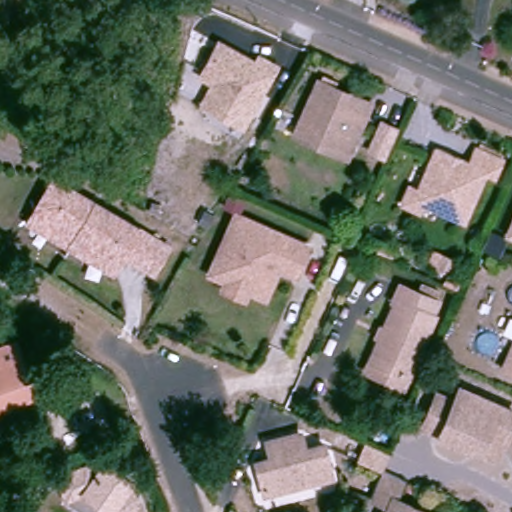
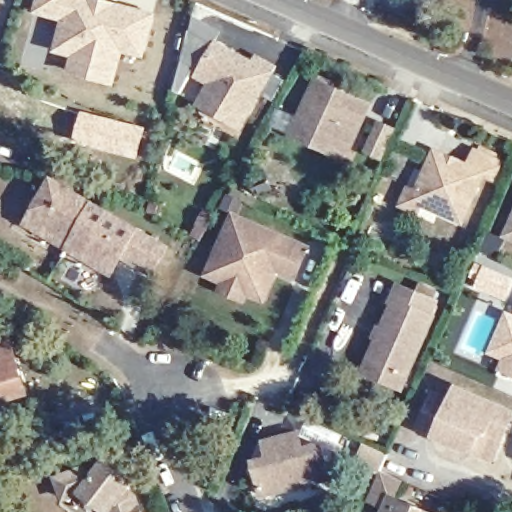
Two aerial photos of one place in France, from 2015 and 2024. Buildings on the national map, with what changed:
new [(73,57),(54,52),(62,20),(34,14),(38,0),(109,0),(158,13),(146,59),(125,54),(116,87),(68,73),(73,57)]
unchanged [(213,87),(200,80),(218,47),(256,69),(259,62),(275,72),(242,131),(215,116),(201,107),(213,87)]
unchanged [(299,129),(306,115),(323,74),(376,97),(356,142),(352,152),(299,129)]
unchanged [(384,125),(400,132),(392,149),(387,160),(371,153),(384,125)]
unchanged [(393,202),(400,186),(409,190),(428,147),(460,162),(467,147),(492,159),(485,175),(476,171),(455,219),(413,200),(409,210),(393,202)]
unchanged [(60,247),(17,224),(20,219),(42,179),(85,204),(158,245),(143,271),(113,254),(105,267),(102,272),(60,247)]
unchanged [(240,216),(225,210),(231,197),(245,203),(240,216)]
unchanged [(512,213),(512,236),(504,232),(512,213)]
unchanged [(227,290),(231,282),(222,278),(213,274),(218,263),(219,260),(237,219),(291,242),(310,251),(298,278),(279,270),(278,273),(271,289),(267,297),(254,292),(250,291),(247,298),(227,290)]
unchanged [(443,257),(459,264),(453,277),(437,271),(443,257)]
unchanged [(358,370),(363,358),(369,345),(373,334),(378,336),(380,331),(376,328),(388,300),(385,299),(392,283),(428,300),(422,313),(425,314),(403,364),(399,373),(394,385),(358,370)]
unchanged [(512,324),(512,373),(494,366),(512,324)]
unchanged [(0,403),(0,346),(4,345),(16,382),(21,397),(0,403)]
unchanged [(458,406),(462,397),(464,392),(512,413),(512,432),(508,441),(492,435),(485,437),(481,448),(474,451),(428,432),(441,399),(458,406)]
unchanged [(297,427),(301,443),(320,438),(329,471),(261,489),(252,456),(267,452),(263,437),(297,427)]
unchanged [(418,512),(390,512),(377,506),(389,479),(367,468),(374,452),(397,462),(389,478),(426,495),(418,512)]
unchanged [(68,492),(61,472),(87,463),(96,471),(106,460),(115,467),(113,470),(119,475),(121,472),(131,481),(126,486),(135,493),(143,512),(113,512),(111,506),(86,485),(68,492)]

